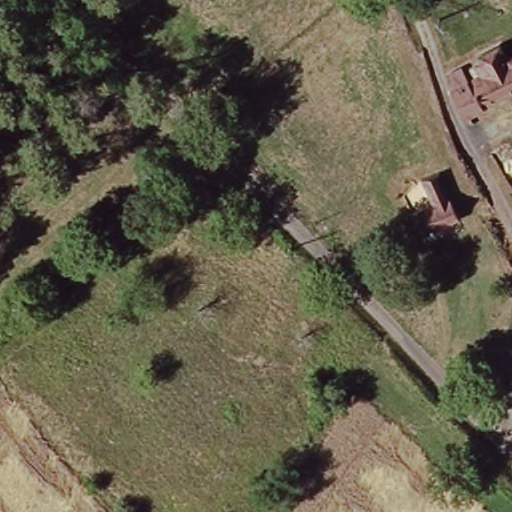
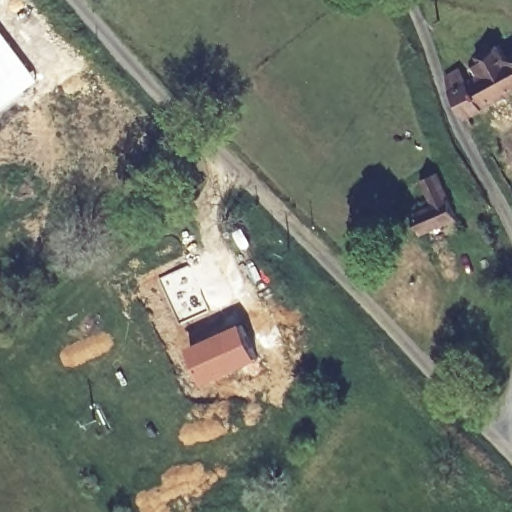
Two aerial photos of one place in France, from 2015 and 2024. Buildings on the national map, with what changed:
new [(37,76),(0,109),(0,28),(37,76)]
unchanged [(465,81),(473,76),(468,66),(475,62),(475,54),(497,43),(506,58),(512,55),(512,90),(462,118),(445,89),(442,76),(460,69),(465,81)]
unchanged [(437,210),(427,184),(442,178),(462,222),(422,240),(413,221),(437,210)]
new [(242,321),(259,358),(202,383),(187,346),(242,321)]

